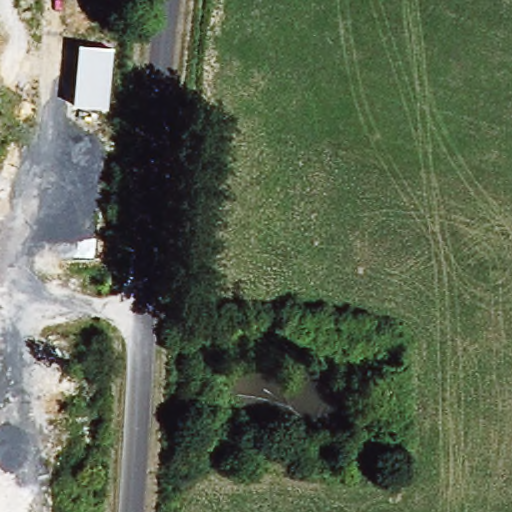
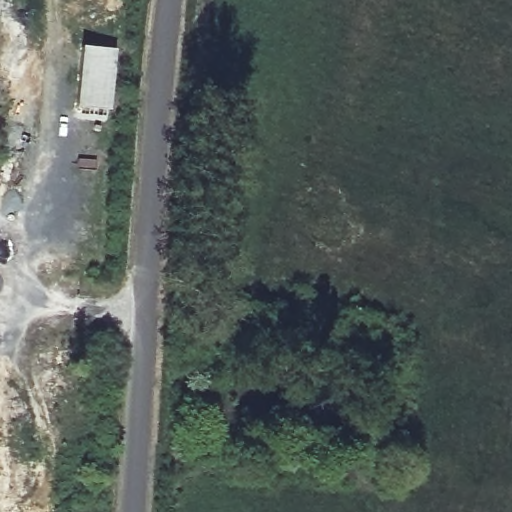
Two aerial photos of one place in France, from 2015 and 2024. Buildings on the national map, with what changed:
unchanged [(110,111),(75,107),(80,46),(115,48),(110,111)]

